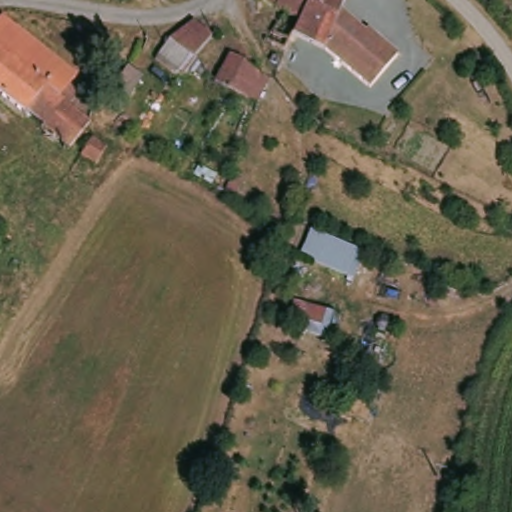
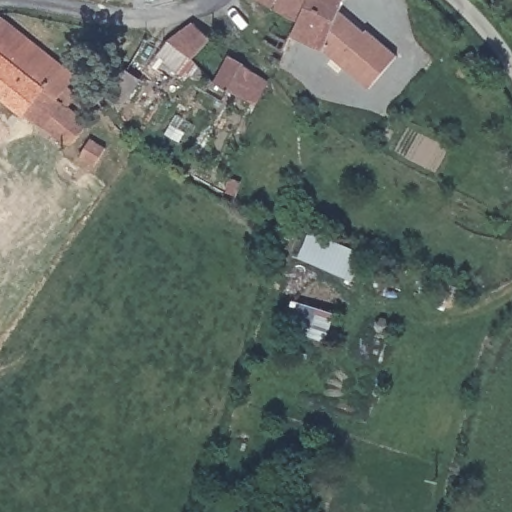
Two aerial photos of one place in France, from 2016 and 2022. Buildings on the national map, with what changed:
unchanged [(253,0),(313,0),(292,46),(289,52),(287,59),(267,49),(269,45),(281,20),(271,15),(250,5),(253,0)]
unchanged [(292,46),(313,0),(351,0),(348,8),(400,37),(383,69),(339,44),(309,50),(303,65),(295,62),(297,57),(289,52),(292,46)]
unchanged [(66,95),(94,114),(74,144),(0,94),(0,19),(80,73),(66,95)]
unchanged [(183,79),(159,61),(173,43),(171,41),(196,22),(213,30),(192,60),(197,63),(183,79)]
unchanged [(255,100),(226,84),(214,77),(227,58),(238,64),(268,80),(255,100)]
unchanged [(93,133),(113,142),(105,160),(84,152),(93,133)]
unchanged [(311,229),(366,256),(356,280),(301,256),(311,229)]

